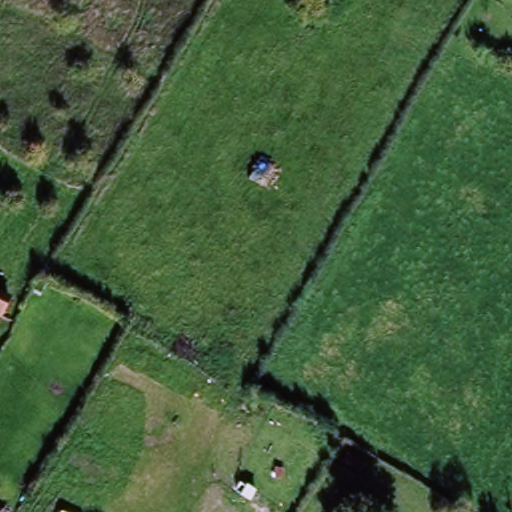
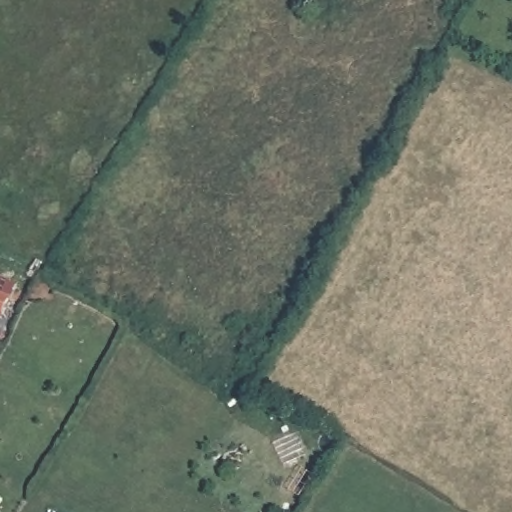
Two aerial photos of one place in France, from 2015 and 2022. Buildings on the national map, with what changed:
unchanged [(4,318),(0,317),(0,298),(10,302),(4,318)]

